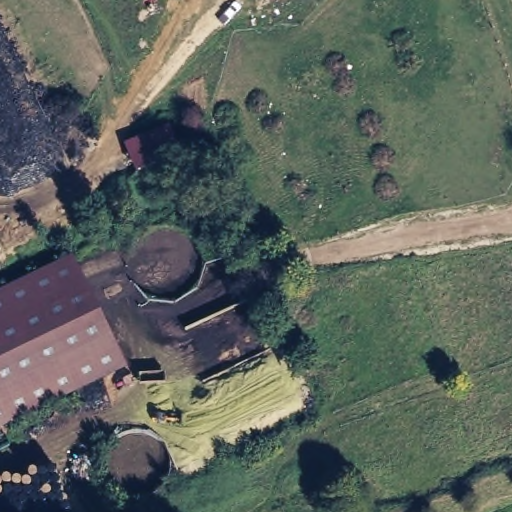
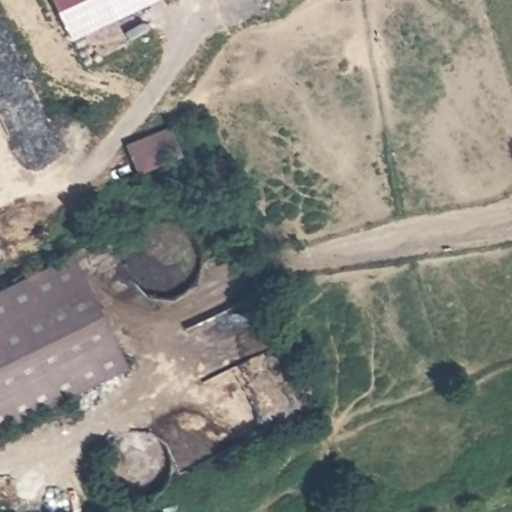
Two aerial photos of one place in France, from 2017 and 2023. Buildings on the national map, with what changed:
new [(68,36),(53,0),(140,0),(68,36)]
unchanged [(122,361),(0,423),(0,289),(72,253),(122,361)]

